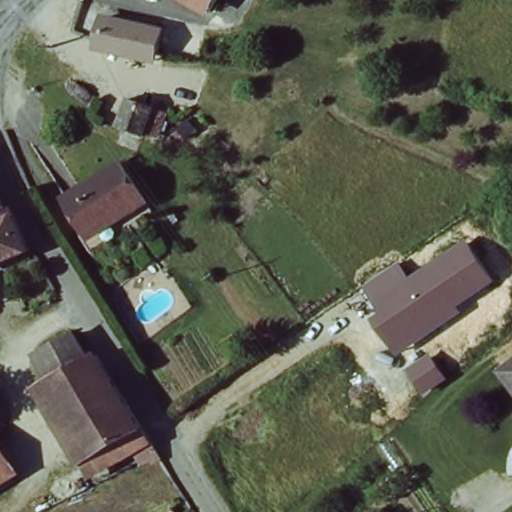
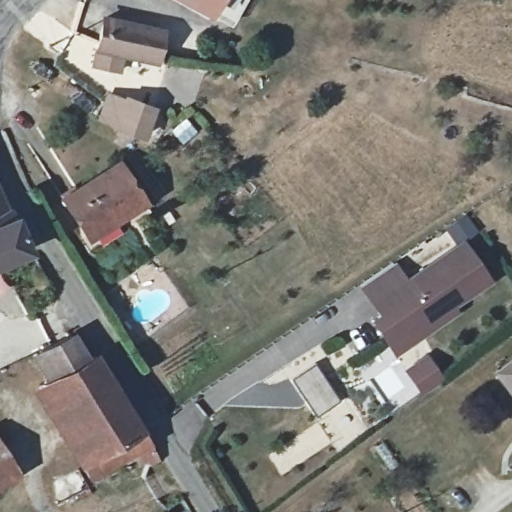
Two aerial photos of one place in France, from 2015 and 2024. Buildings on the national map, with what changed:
unchanged [(186,0),(215,0),(207,12),(186,0)]
unchanged [(118,19),(121,20),(159,31),(158,32),(157,36),(153,54),(96,40),(94,39),(106,15),(118,19)]
unchanged [(137,96),(158,105),(149,134),(138,130),(124,124),(130,112),(137,96)]
unchanged [(118,161),(143,200),(115,217),(112,213),(86,231),(64,196),(118,161)]
unchanged [(0,210),(0,206),(2,210),(0,210)]
unchanged [(7,207),(17,225),(27,245),(32,254),(0,267),(0,210),(2,210),(7,207)]
unchanged [(489,281),(452,308),(457,313),(393,356),(367,318),(376,312),(361,287),(397,263),(408,278),(464,241),(489,281)]
unchanged [(78,463),(71,467),(31,386),(49,376),(36,351),(78,329),(96,349),(148,429),(160,455),(138,466),(133,453),(90,480),(78,463)]
unchanged [(425,353),(443,380),(420,395),(403,370),(425,353)]
unchanged [(493,369),(512,354),(512,393),(493,369)]
new [(291,378),(315,362),(340,400),(316,415),(291,378)]
unchanged [(0,484),(0,460),(10,478),(0,484)]

